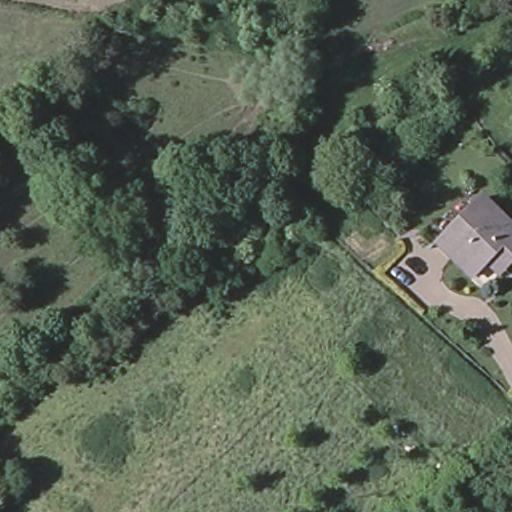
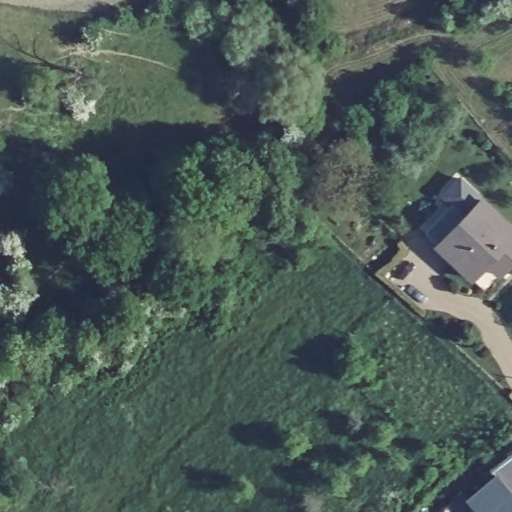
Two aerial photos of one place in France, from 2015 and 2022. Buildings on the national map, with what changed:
unchanged [(480,199),(512,228),(512,261),(505,268),(492,257),(472,278),(436,245),(480,199)]
new [(445,505),(462,491),(469,493),(495,471),(490,469),(512,453),(512,512),(452,512),(445,505)]

